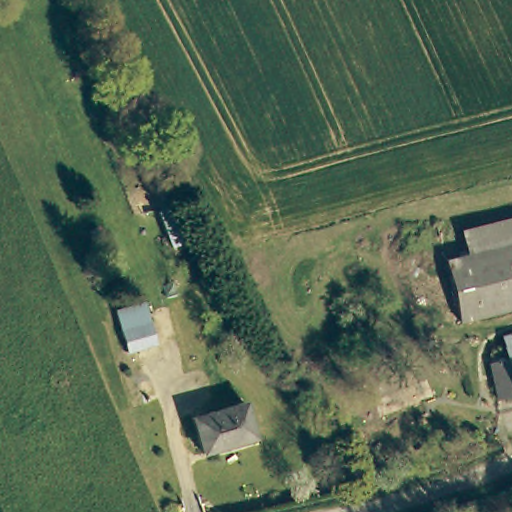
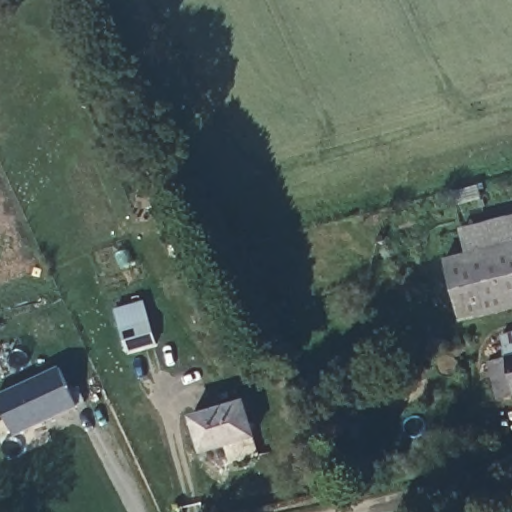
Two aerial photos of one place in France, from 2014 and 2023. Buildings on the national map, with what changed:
unchanged [(194,240),(178,245),(166,210),(182,205),(194,240)]
unchanged [(442,232),(512,218),(512,243),(447,256),(442,232)]
unchanged [(512,243),(512,307),(460,317),(447,256),(512,243)]
unchanged [(157,341),(129,348),(119,306),(147,300),(157,341)]
unchanged [(486,342),(504,339),(502,332),(512,330),(512,391),(497,394),(486,342)]
new [(81,408),(13,439),(0,411),(0,395),(58,366),(81,408)]
unchanged [(380,418),(371,399),(426,377),(434,398),(380,418)]
unchanged [(251,438),(199,451),(190,417),(243,404),(251,438)]

